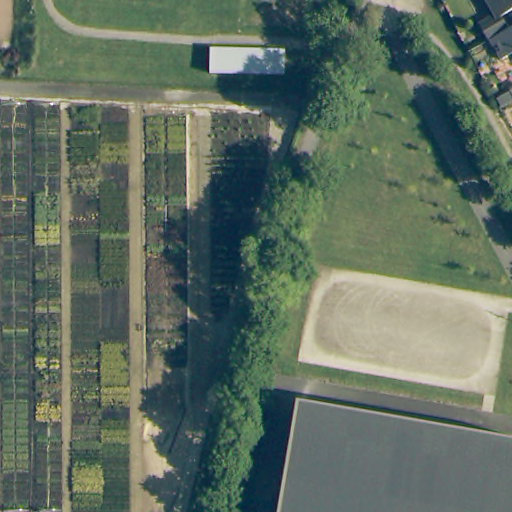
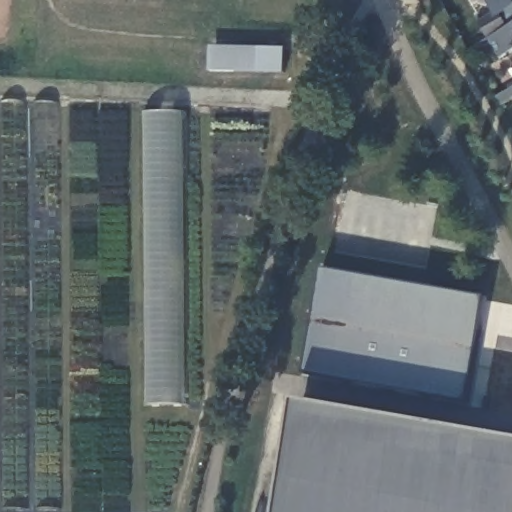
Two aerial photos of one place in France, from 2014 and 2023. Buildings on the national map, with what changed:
unchanged [(509,29),(493,39),(492,39),(482,22),(500,11),(495,5),(492,0),(512,0),(512,27),(509,29)]
unchanged [(509,29),(512,27),(512,53),(504,58),(493,39),(509,29)]
new [(212,46),(287,47),(287,74),(213,72),(212,46)]
new [(146,113),(187,112),(188,405),(148,405),(146,113)]
new [(470,403),(307,374),(327,270),(487,298),(470,403)]
unchanged [(302,402),(512,439),(512,512),(283,512),(302,402)]

